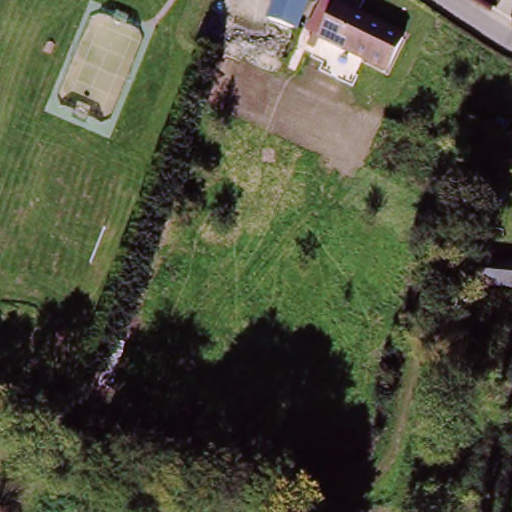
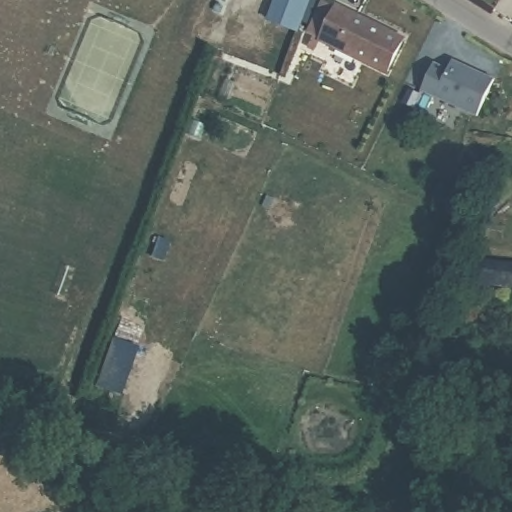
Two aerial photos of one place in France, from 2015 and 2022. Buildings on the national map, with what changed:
unchanged [(295,32),(268,22),(276,0),(305,0),(295,32)]
unchanged [(317,39),(332,7),(401,40),(386,72),(317,39)]
new [(433,62),(448,69),(452,60),(494,79),(477,115),(421,90),(433,62)]
unchanged [(480,279),(486,258),(512,266),(512,289),(480,279)]

